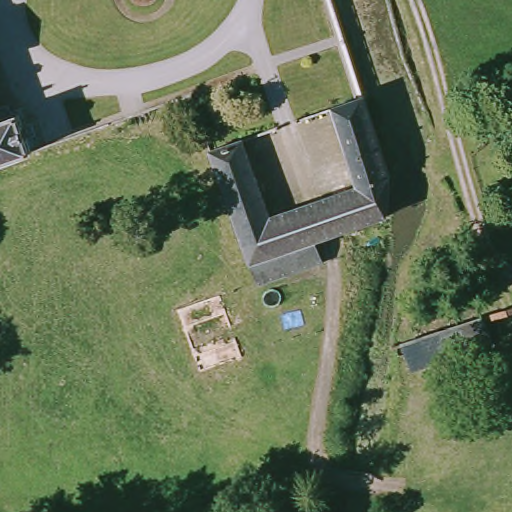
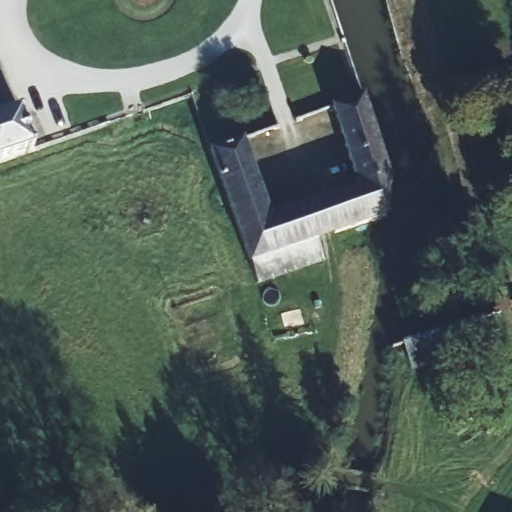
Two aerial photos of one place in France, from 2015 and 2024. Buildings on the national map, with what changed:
unchanged [(245,142),(272,215),(356,187),(331,114),(363,102),(387,176),(384,221),(319,242),(324,259),(325,263),(286,278),(263,286),(216,153),(245,142)]
unchanged [(15,115),(29,154),(0,164),(0,121),(15,115)]
unchanged [(398,344),(489,315),(497,343),(423,367),(419,355),(402,358),(401,354),(396,354),(398,344)]

